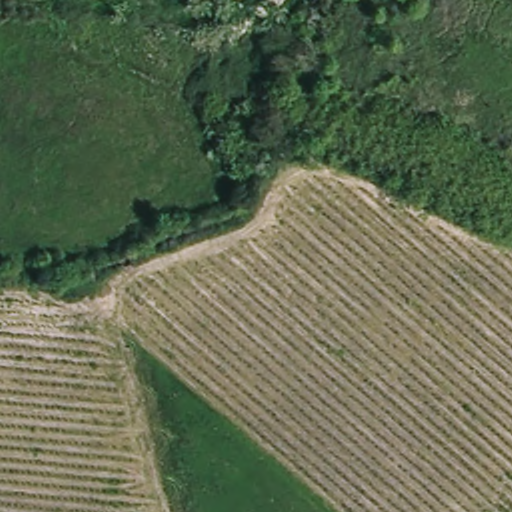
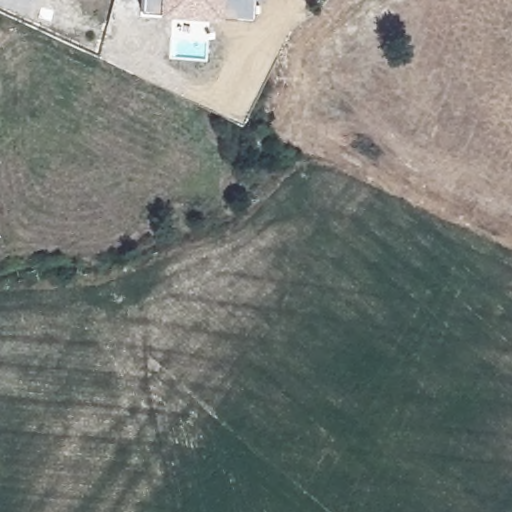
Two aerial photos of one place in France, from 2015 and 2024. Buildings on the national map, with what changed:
new [(221,15),(221,19),(158,15),(158,11),(140,10),(141,0),(252,0),(251,17),(221,15)]

